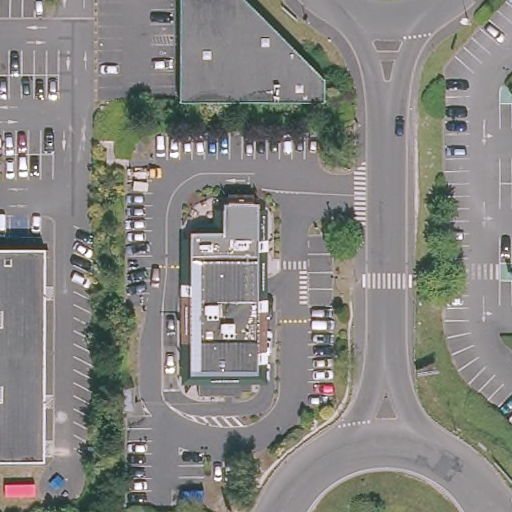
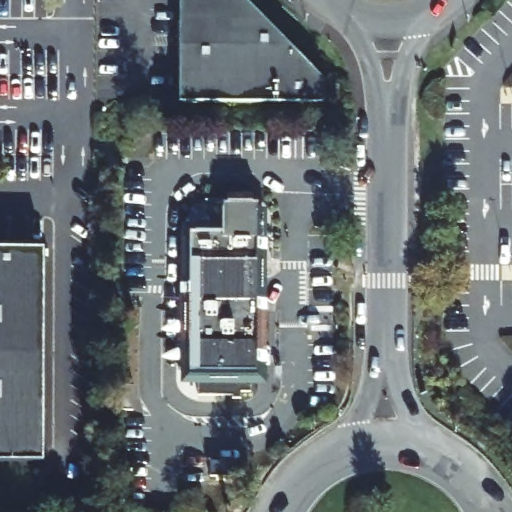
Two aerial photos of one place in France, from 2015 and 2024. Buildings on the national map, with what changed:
unchanged [(246,99),(181,99),(181,0),(251,0),(325,74),(326,98),(320,98),(246,99)]
unchanged [(226,225),(233,230),(233,247),(259,248),(257,376),(253,376),(253,390),(245,391),(243,397),(231,396),(230,391),(200,392),(200,376),(189,376),(190,229),(196,225),(226,225)]
unchanged [(0,244),(47,244),(47,457),(0,457),(0,244)]
unchanged [(131,409),(120,410),(120,384),(131,384),(131,409)]

